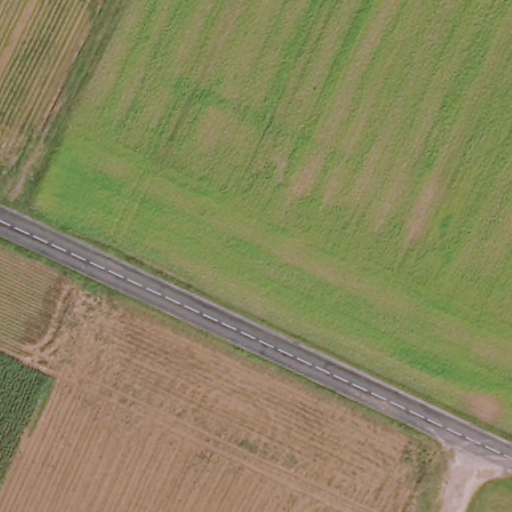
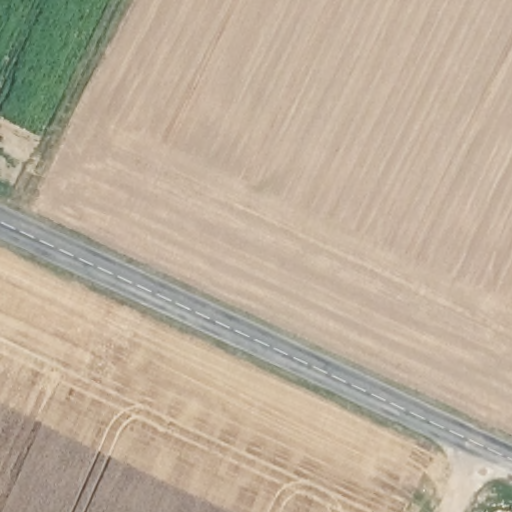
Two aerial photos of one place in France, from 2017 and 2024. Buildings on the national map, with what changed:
[]

